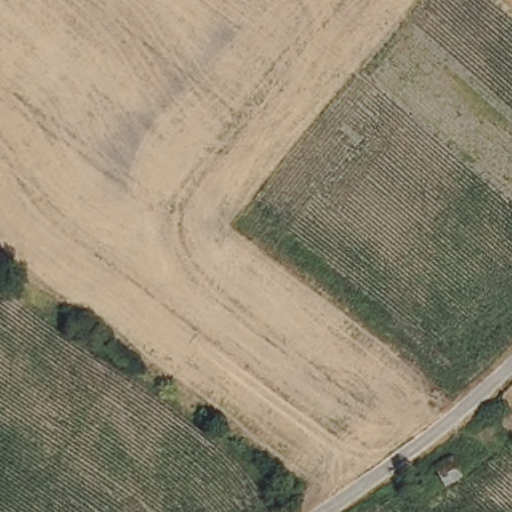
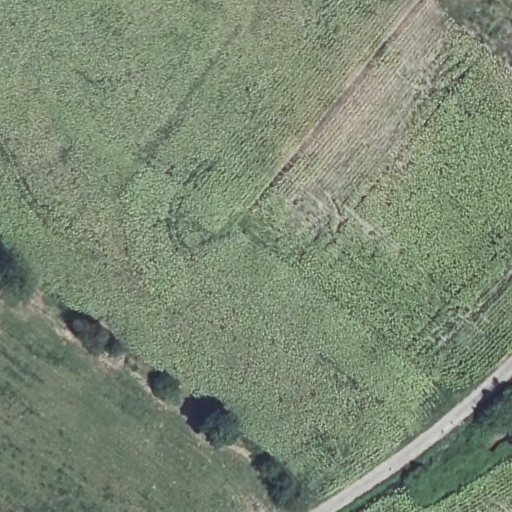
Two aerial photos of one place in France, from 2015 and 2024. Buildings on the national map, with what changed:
unchanged [(446,492),(437,473),(454,463),(464,483),(446,492)]

